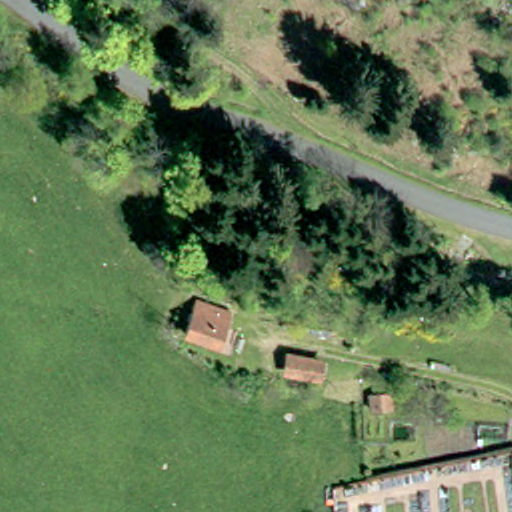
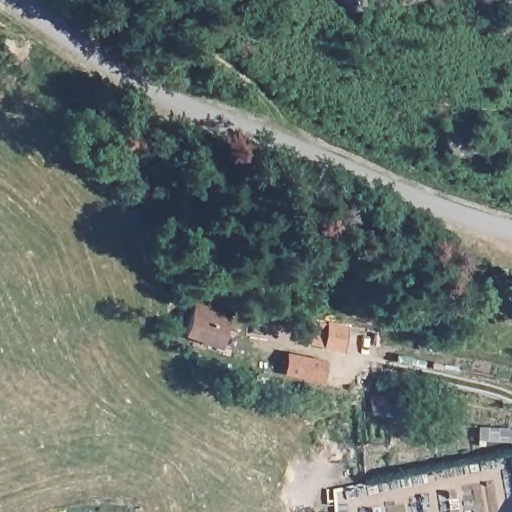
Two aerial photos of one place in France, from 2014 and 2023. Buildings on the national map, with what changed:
unchanged [(213,344),(188,336),(200,304),(233,317),(228,330),(221,348),(213,344)]
unchanged [(292,359),(323,366),(320,380),(289,373),(292,359)]
unchanged [(384,398),(387,415),(376,415),(374,399),(384,398)]
unchanged [(512,430),(511,444),(479,442),(482,429),(512,430)]

